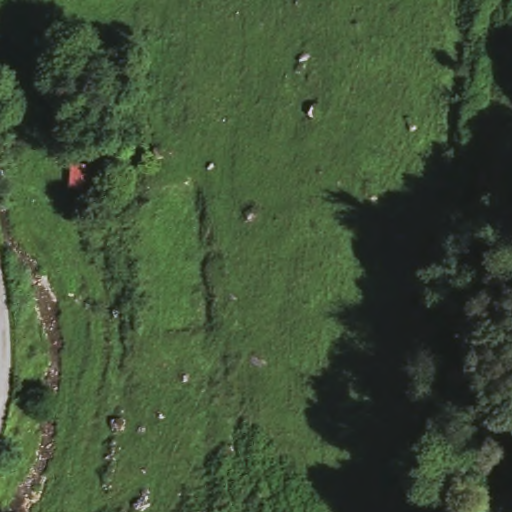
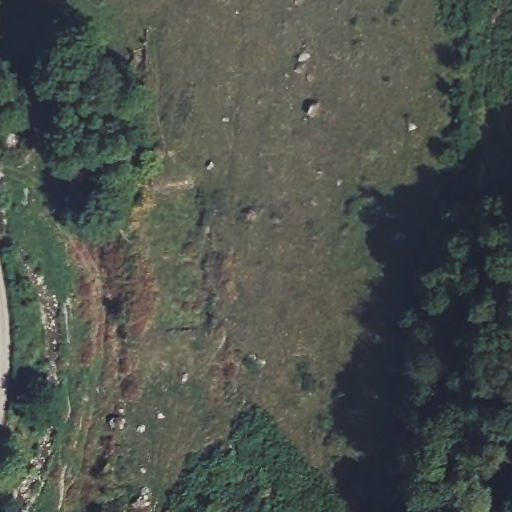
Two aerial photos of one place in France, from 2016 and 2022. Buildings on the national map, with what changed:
unchanged [(95,183),(92,200),(68,196),(73,164),(98,168),(95,183)]

